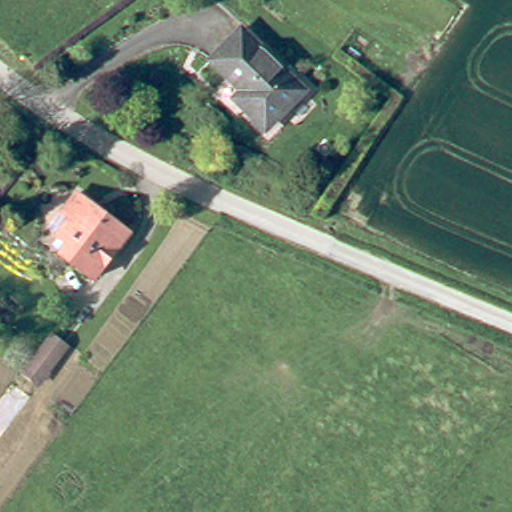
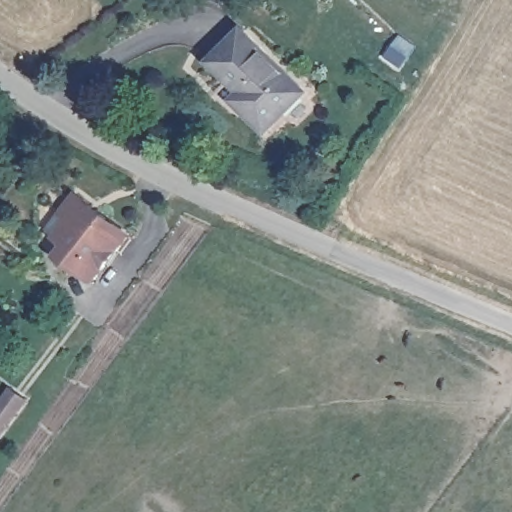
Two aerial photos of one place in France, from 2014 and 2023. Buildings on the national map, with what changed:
unchanged [(247,29),(306,90),(270,127),(249,106),(257,98),(218,57),(247,29)]
unchanged [(93,282),(63,262),(73,251),(54,237),(67,220),(59,215),(72,197),(125,236),(114,252),(106,263),(93,282)]
unchanged [(29,400),(3,437),(0,435),(0,399),(10,386),(29,400)]

